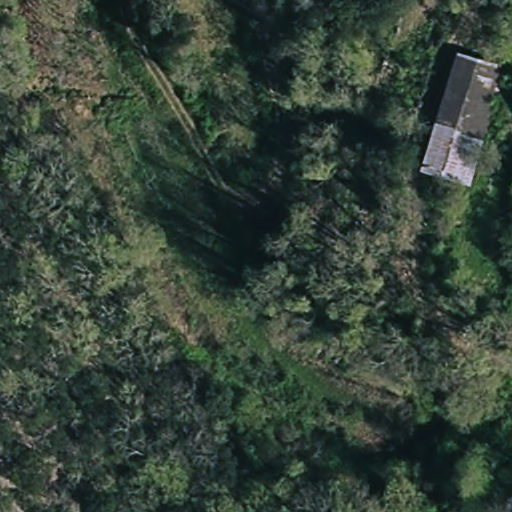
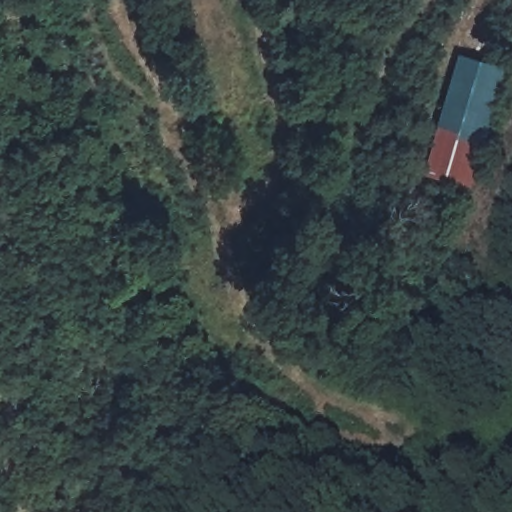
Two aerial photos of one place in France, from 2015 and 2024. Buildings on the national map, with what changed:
unchanged [(503,62),(485,141),(473,190),(451,184),(420,176),(449,50),(503,62)]

